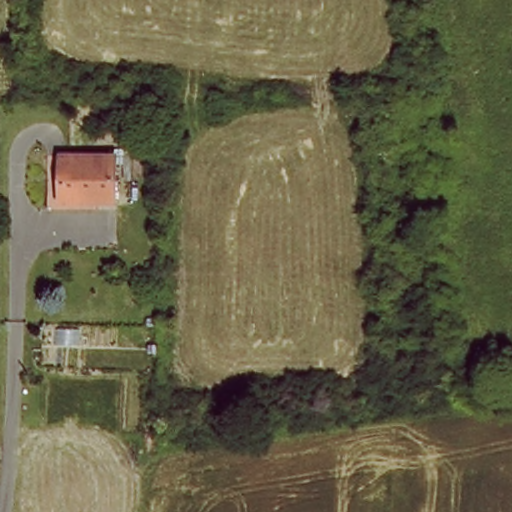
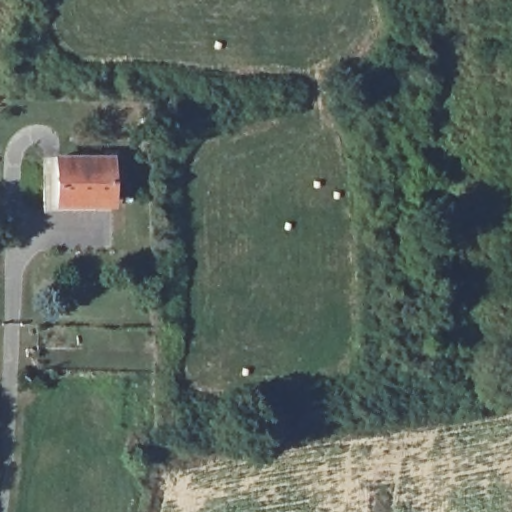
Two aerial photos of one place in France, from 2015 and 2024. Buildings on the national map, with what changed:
unchanged [(98,210),(50,209),(48,150),(64,150),(65,198),(98,198),(98,210)]
unchanged [(65,198),(64,150),(115,150),(117,199),(98,198),(65,198)]

